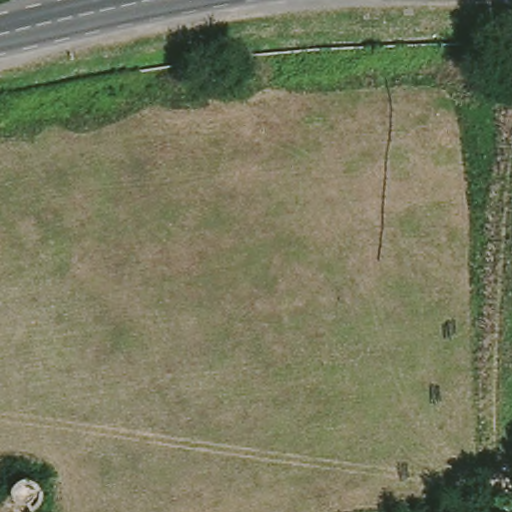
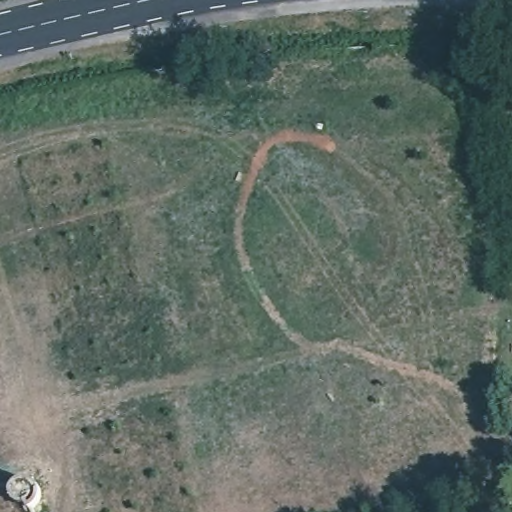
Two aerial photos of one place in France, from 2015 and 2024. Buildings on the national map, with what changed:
unchanged [(30,485),(44,495),(45,511),(43,512),(16,512),(13,490),(30,485)]

